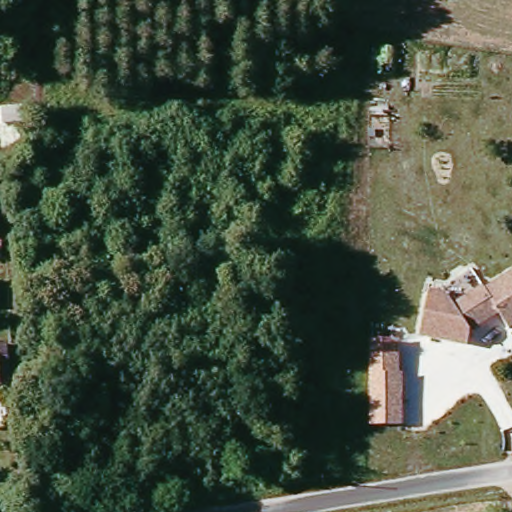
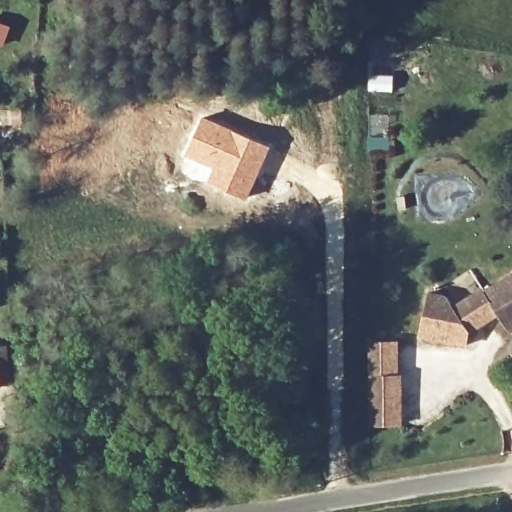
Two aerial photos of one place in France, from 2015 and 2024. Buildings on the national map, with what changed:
new [(202,116),(271,146),(245,200),(207,182),(205,186),(176,172),(202,116)]
unchanged [(458,306),(486,287),(489,290),(512,276),(512,326),(510,328),(500,312),(472,331),(470,343),(424,334),(431,292),(451,296),(458,306)]
unchanged [(399,341),(399,372),(403,372),(402,426),(371,426),(372,341),(399,341)]
unchanged [(2,366),(0,384),(0,366),(2,366)]

